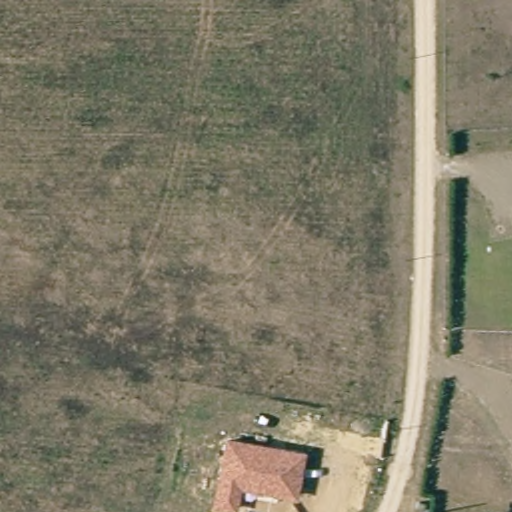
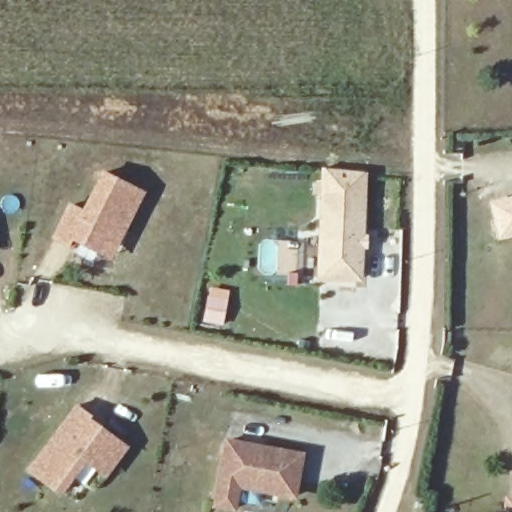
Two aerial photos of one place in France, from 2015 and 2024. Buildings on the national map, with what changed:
new [(73,239),(69,246),(50,236),(69,201),(82,208),(102,170),(147,192),(112,260),(73,239)]
new [(364,234),(368,234),(367,251),(363,251),(362,283),(316,281),(320,192),(366,194),(364,234)]
new [(512,195),(512,236),(497,240),(488,200),(512,195)]
new [(92,418),(129,447),(106,478),(85,462),(61,496),(26,470),(76,401),(93,414),(92,418)]
unchanged [(237,512),(211,507),(226,438),(306,451),(297,500),(242,489),(237,512)]
new [(505,496),(512,497),(512,512),(504,512),(505,496)]

